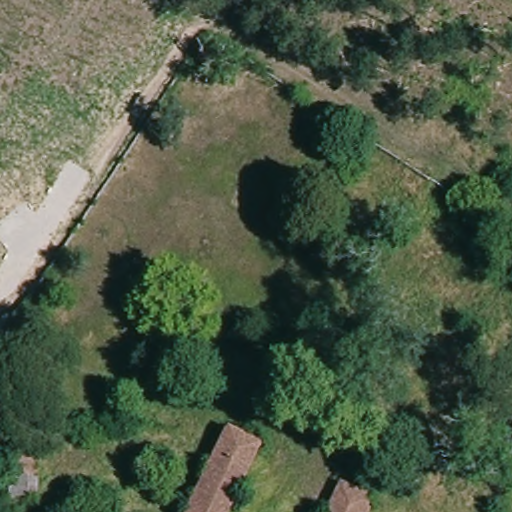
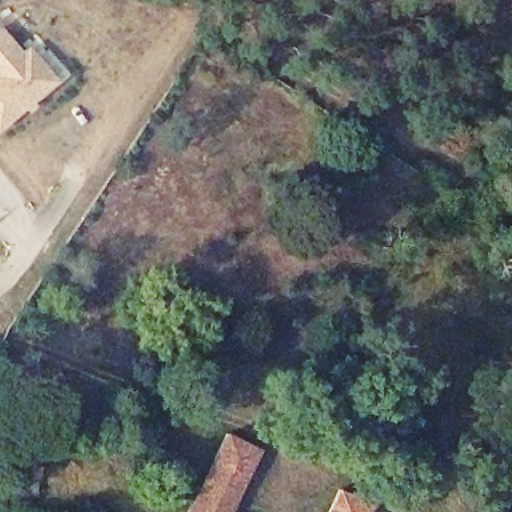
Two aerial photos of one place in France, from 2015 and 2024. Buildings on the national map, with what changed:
new [(21,49),(28,42),(58,80),(0,129),(0,23),(21,49)]
unchanged [(234,512),(192,512),(229,432),(264,448),(234,512)]
unchanged [(38,479),(36,478),(36,496),(21,496),(20,501),(8,501),(9,453),(38,453),(38,479)]
unchanged [(342,488),(378,504),(375,512),(331,512),(342,488)]

